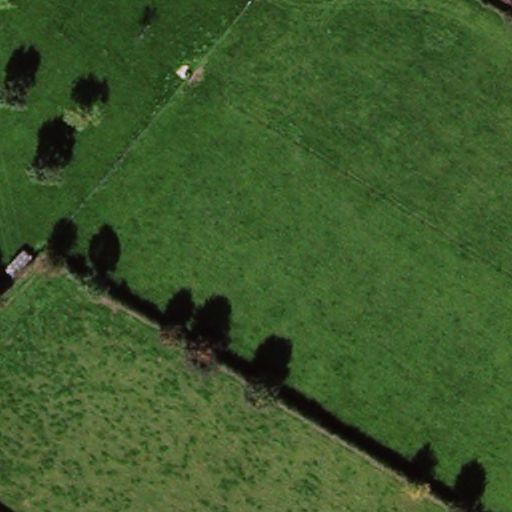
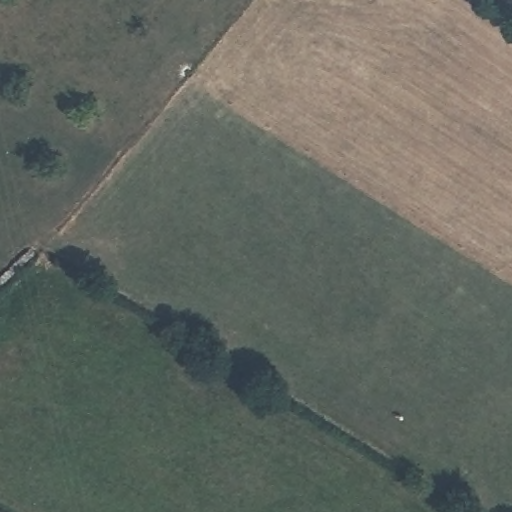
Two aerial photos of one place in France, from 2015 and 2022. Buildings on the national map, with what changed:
[]

